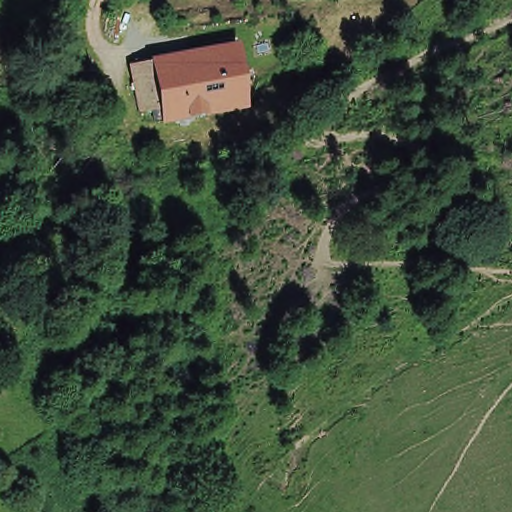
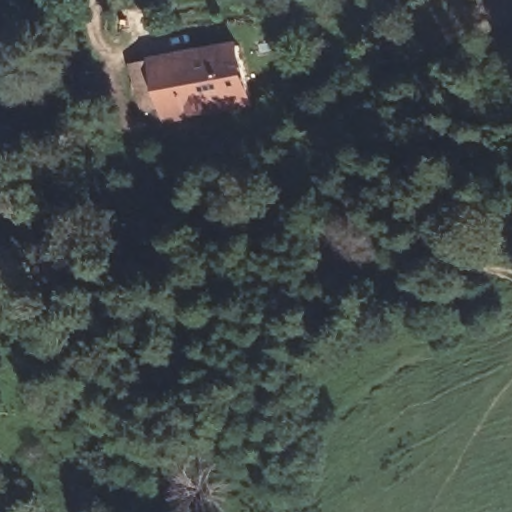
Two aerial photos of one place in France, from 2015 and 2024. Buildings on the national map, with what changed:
unchanged [(235,38),(246,95),(162,115),(157,98),(136,100),(132,60),(235,38)]

